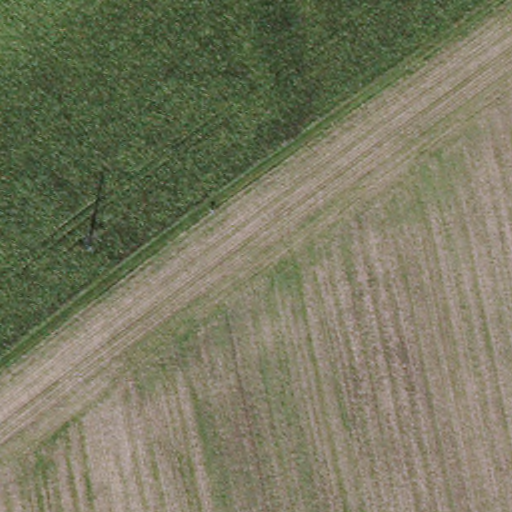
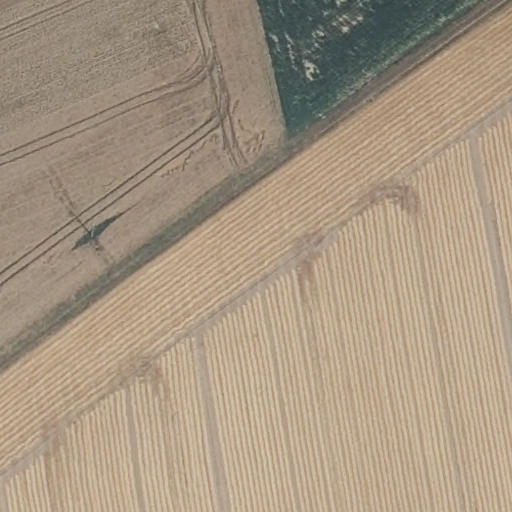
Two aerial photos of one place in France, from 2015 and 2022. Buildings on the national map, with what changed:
[]

